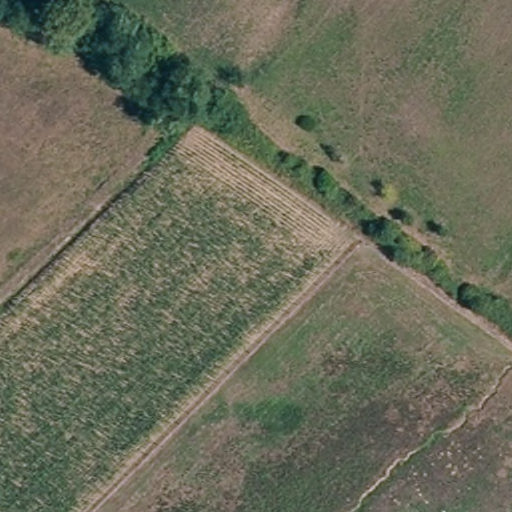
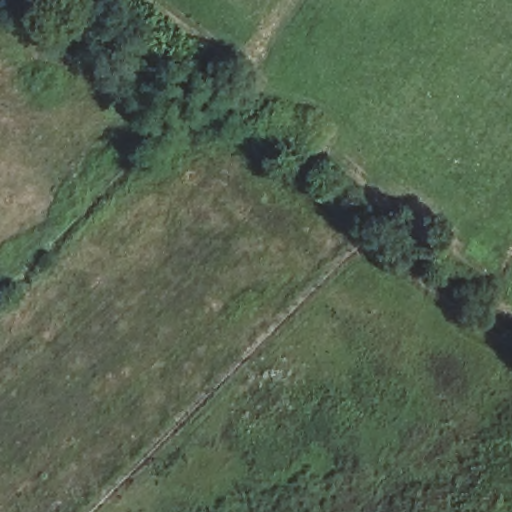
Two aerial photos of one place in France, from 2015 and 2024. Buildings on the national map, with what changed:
[]

